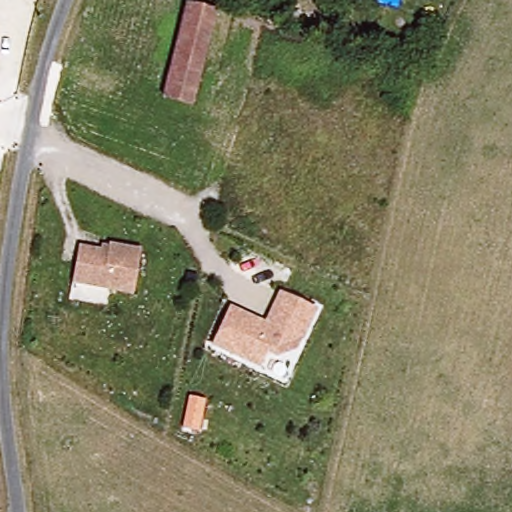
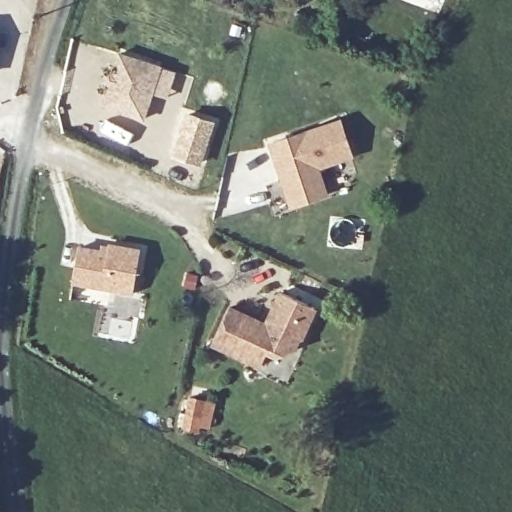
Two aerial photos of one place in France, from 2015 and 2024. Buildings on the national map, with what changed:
demolished [(202,54),(185,100),(159,93),(190,3),(235,19),(221,61),(202,54)]
new [(162,66),(145,120),(100,106),(118,51),(162,66)]
new [(341,121),(353,157),(318,169),(328,196),(293,210),(270,147),(341,121)]
unchanged [(139,252),(134,294),(72,286),(77,251),(100,254),(100,250),(107,250),(107,247),(139,252)]
unchanged [(277,358),(266,352),(259,367),(212,343),(229,307),(266,325),(282,293),(316,310),(296,352),(277,358)]

